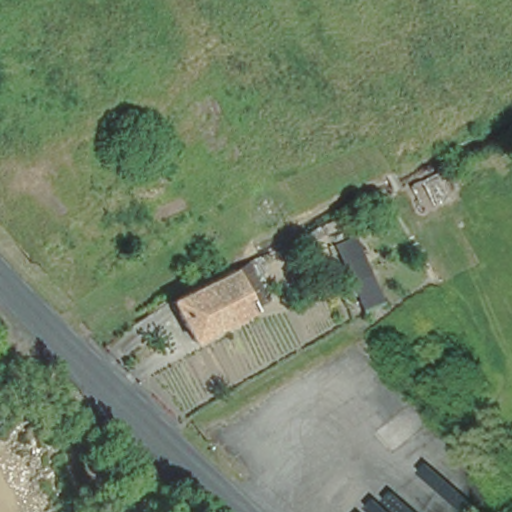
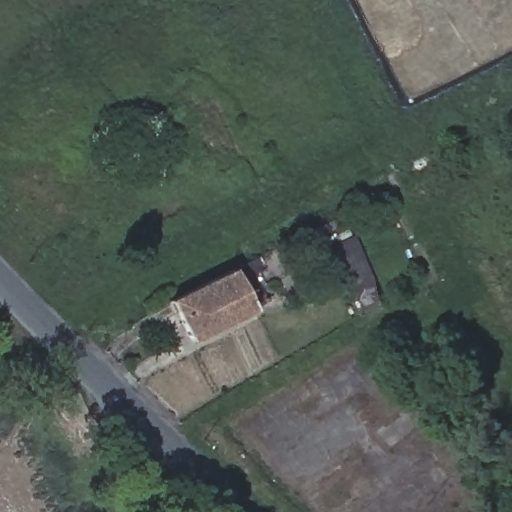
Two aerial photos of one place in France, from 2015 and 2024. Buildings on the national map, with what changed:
unchanged [(386,302),(366,311),(333,245),(353,235),(386,302)]
unchanged [(190,341),(170,300),(233,268),(253,309),(190,341)]

